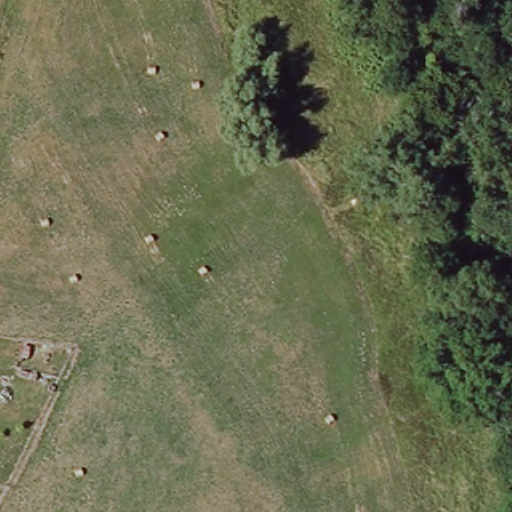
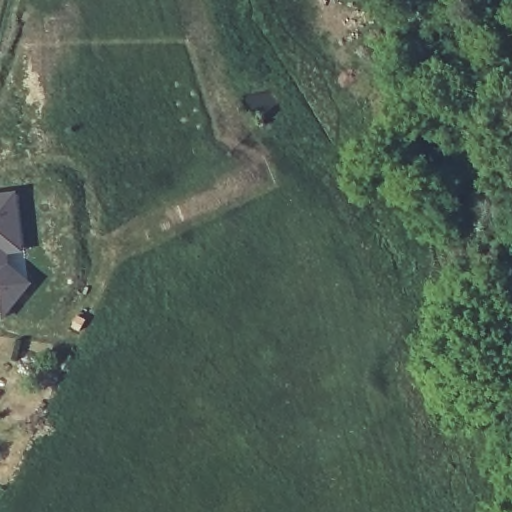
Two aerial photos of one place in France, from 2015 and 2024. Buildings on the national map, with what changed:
new [(20,252),(5,255),(6,263),(32,284),(0,321),(0,196),(14,194),(20,252)]

